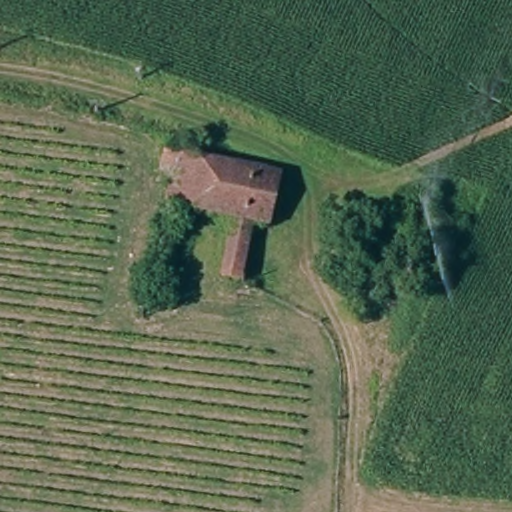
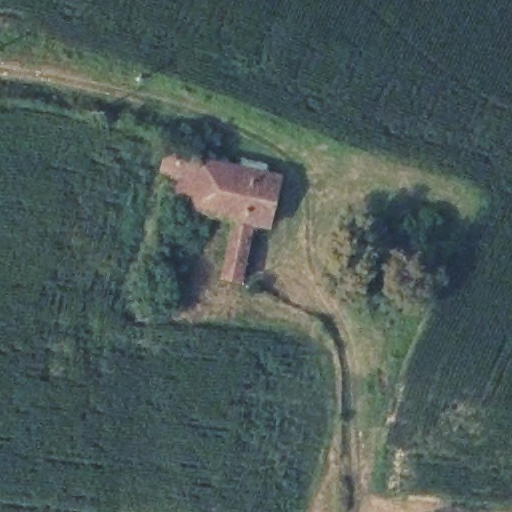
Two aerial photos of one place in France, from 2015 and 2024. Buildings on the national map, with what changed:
unchanged [(182,150),(284,171),(273,222),(258,219),(254,239),(247,272),(245,272),(228,268),(240,215),(172,201),(178,168),(182,150)]

